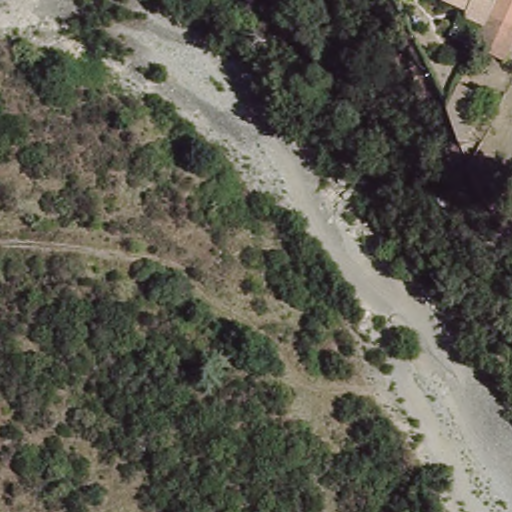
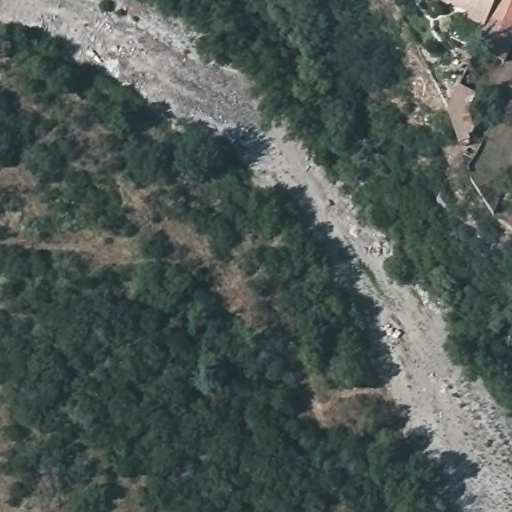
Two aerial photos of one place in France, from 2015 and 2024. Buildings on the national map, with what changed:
unchanged [(483,32),(465,24),(470,12),(445,1),(445,0),(497,0),(490,18),(483,32)]
unchanged [(497,0),(512,0),(512,29),(490,18),(497,0)]
unchanged [(512,29),(512,45),(505,62),(475,49),(483,32),(490,18),(512,29)]
unchanged [(415,42),(408,45),(405,38),(411,35),(415,42)]
unchanged [(453,96),(470,103),(462,121),(472,139),(471,144),(463,145),(463,150),(458,151),(443,119),(453,96)]

